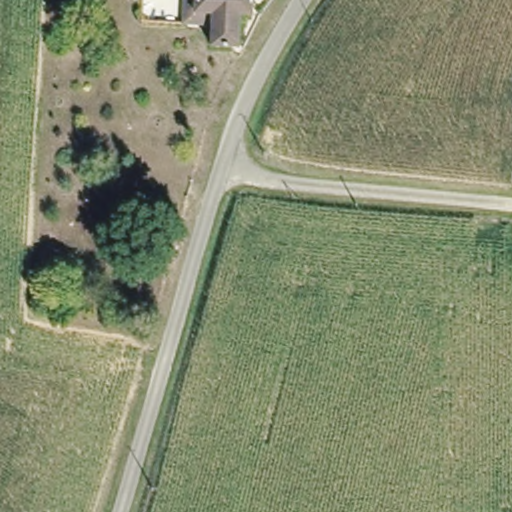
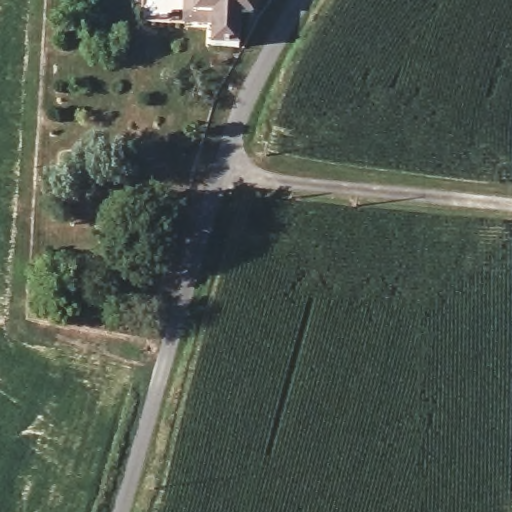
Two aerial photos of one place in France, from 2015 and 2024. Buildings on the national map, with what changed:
unchanged [(200,42),(199,11),(177,10),(179,0),(245,0),(245,13),(227,14),(227,42),(200,42)]

